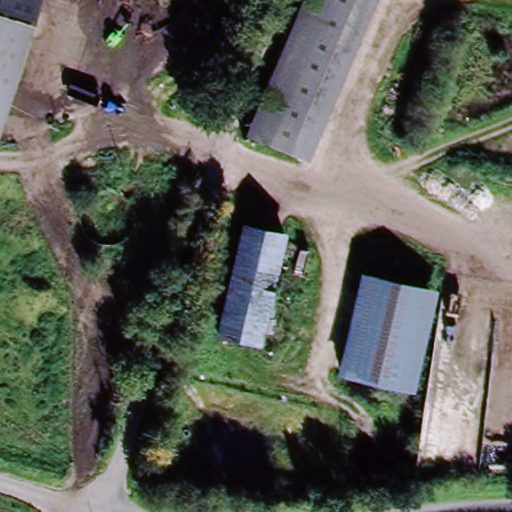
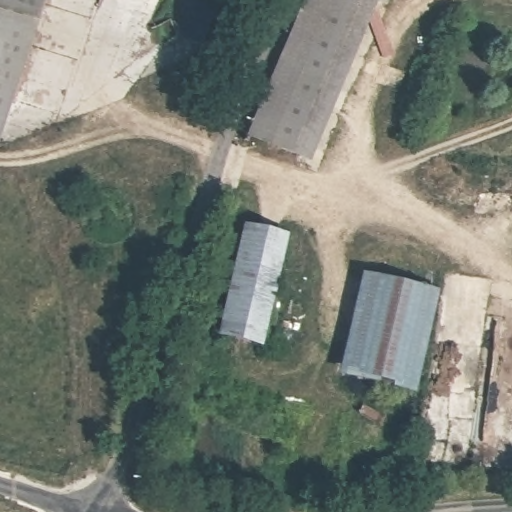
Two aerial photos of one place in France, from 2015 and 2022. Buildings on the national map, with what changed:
unchanged [(43,0),(0,139),(0,0),(43,0)]
unchanged [(248,140),(304,0),(384,0),(313,168),(248,140)]
unchanged [(242,236),(278,244),(257,351),(221,344),(242,236)]
unchanged [(357,274),(445,294),(422,396),(335,378),(357,274)]

